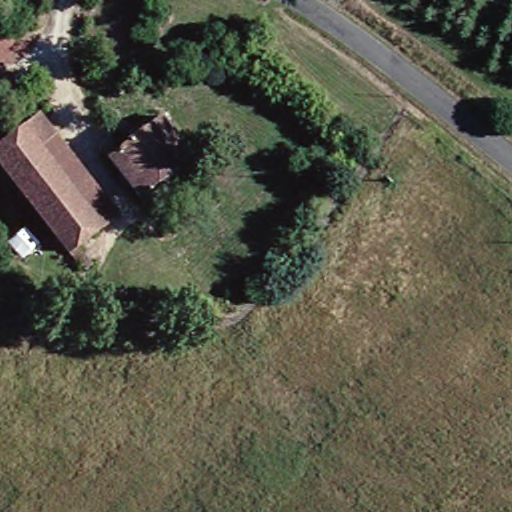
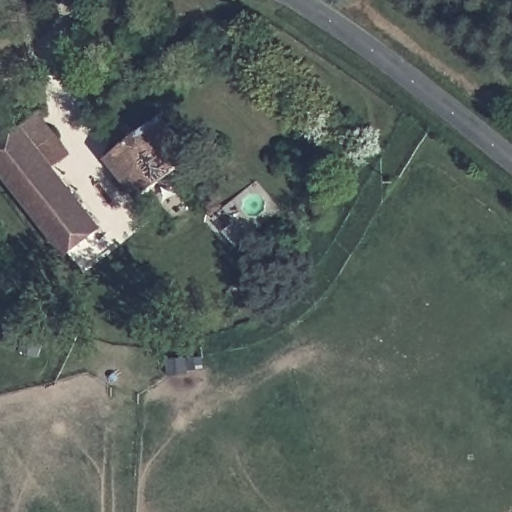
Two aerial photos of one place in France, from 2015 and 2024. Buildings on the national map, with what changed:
unchanged [(32,114),(111,216),(95,230),(15,127),(32,114)]
unchanged [(131,196),(104,157),(156,120),(183,156),(131,196)]
unchanged [(67,254),(0,169),(0,139),(15,127),(95,230),(67,254)]

